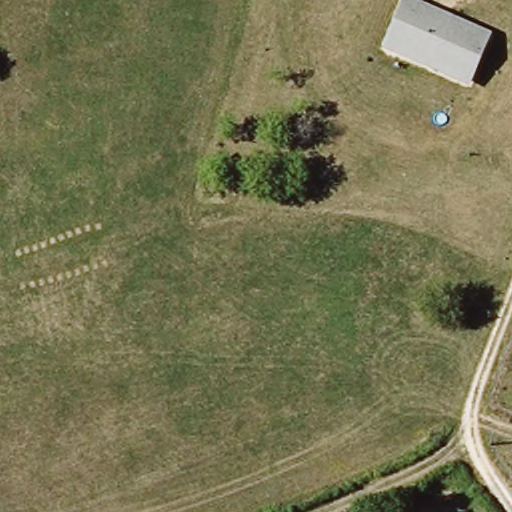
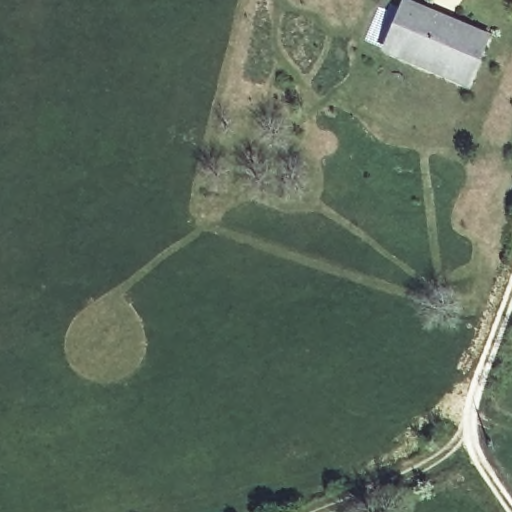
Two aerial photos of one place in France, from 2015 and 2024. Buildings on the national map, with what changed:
unchanged [(491,34),(469,89),(381,52),(403,0),(408,0),(491,34)]

